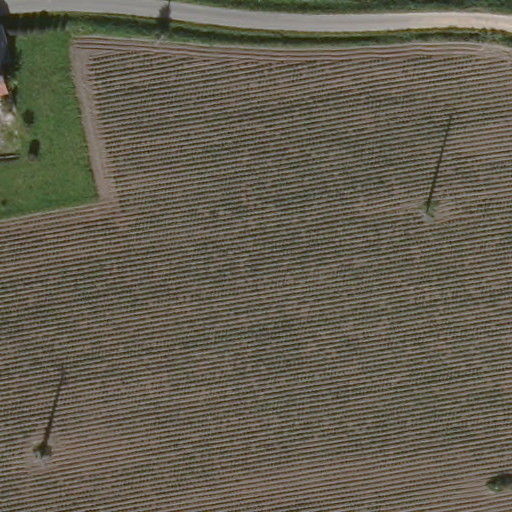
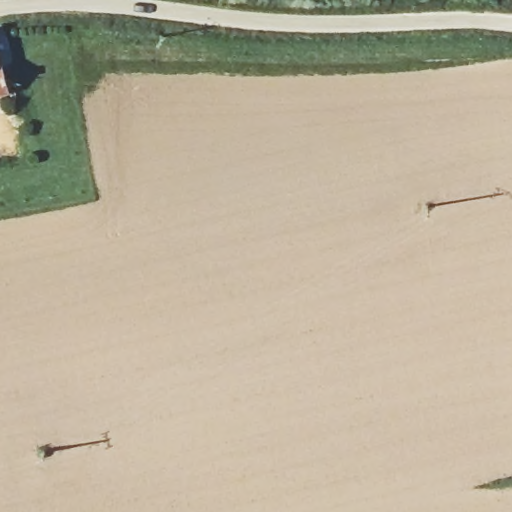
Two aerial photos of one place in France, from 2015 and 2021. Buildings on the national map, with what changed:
unchanged [(0,68),(0,30),(10,66),(0,68)]
unchanged [(0,70),(7,95),(0,97),(0,70)]

